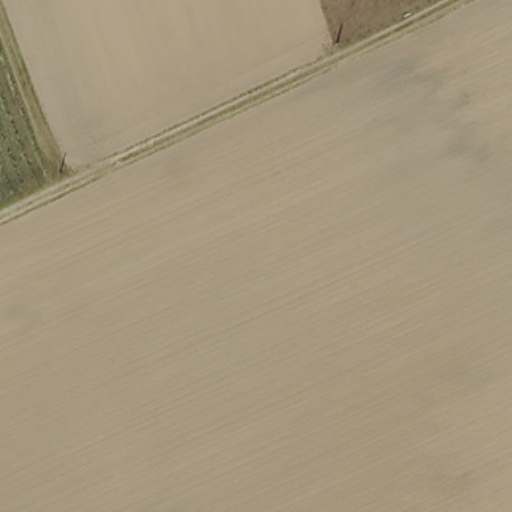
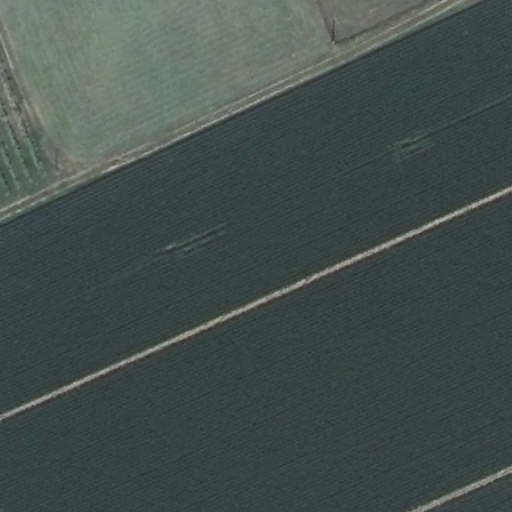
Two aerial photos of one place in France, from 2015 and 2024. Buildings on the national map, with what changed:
[]

